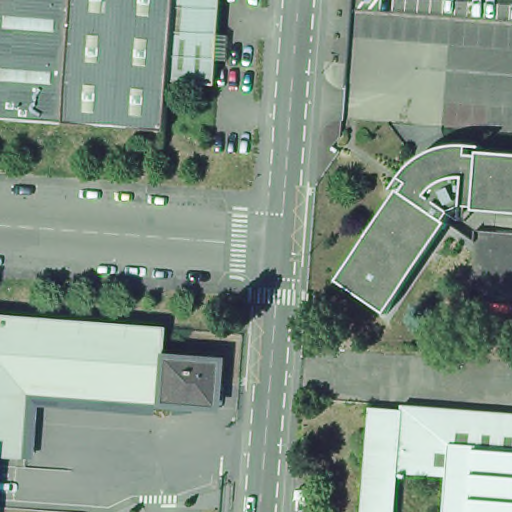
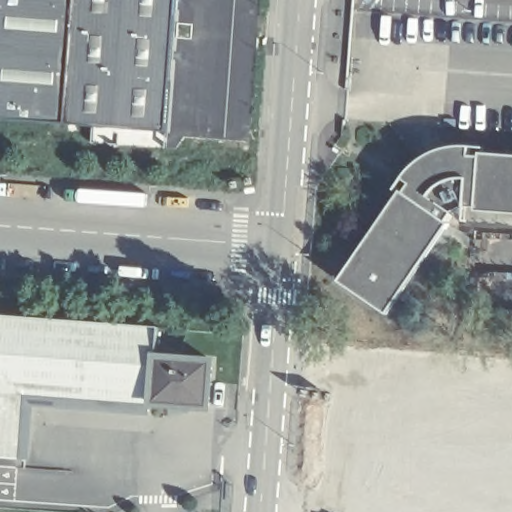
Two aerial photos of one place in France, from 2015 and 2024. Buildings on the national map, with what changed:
unchanged [(0,0),(67,0),(57,125),(0,120),(0,0)]
unchanged [(67,0),(114,0),(103,128),(57,125),(67,0)]
unchanged [(217,61),(207,60),(205,86),(161,83),(157,132),(103,128),(114,0),(212,0),(209,36),(220,36),(217,61)]
demolished [(404,2),(402,31),(383,30),(385,1),(404,2)]
unchanged [(392,195),(395,197),(400,189),(392,184),(401,173),(410,166),(412,169),(437,157),(436,153),(448,151),(460,151),(460,160),(470,161),(470,157),(512,160),(512,220),(466,216),(467,212),(456,211),(443,218),(437,227),(440,229),(378,320),(329,286),(392,195)]
unchanged [(12,397),(5,459),(0,459),(0,314),(151,325),(148,354),(208,363),(200,410),(12,397)]
demolished [(355,512),(363,414),(392,416),(393,410),(512,418),(512,512),(355,512)]

